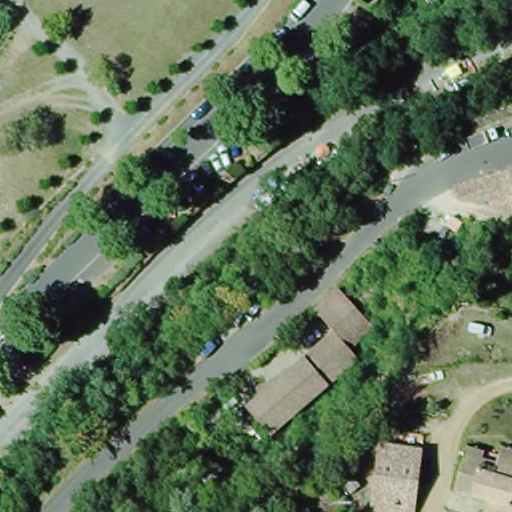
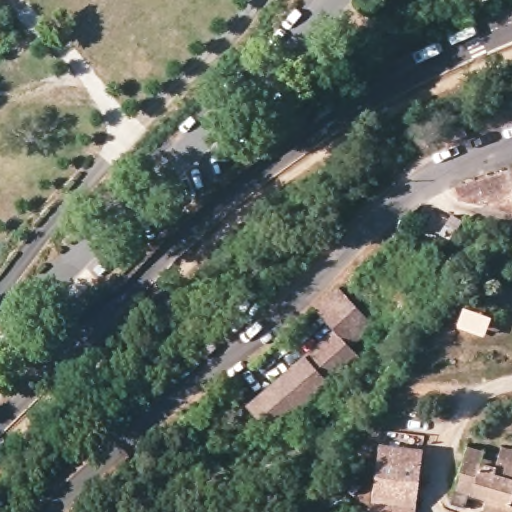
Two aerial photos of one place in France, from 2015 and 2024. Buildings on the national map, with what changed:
unchanged [(361,0),(381,0),(372,9),(361,0)]
unchanged [(489,209),(464,210),(461,196),(484,185),(512,176),(512,216),(489,209)]
unchanged [(339,285),(344,292),(369,320),(343,342),(332,331),(312,308),(339,285)]
unchanged [(332,331),(343,342),(360,358),(326,390),(301,362),(332,331)]
unchanged [(247,408),(301,362),(326,390),(271,433),(247,408)]
unchanged [(385,441),(426,450),(417,505),(375,497),(385,441)]
unchanged [(487,503),(453,497),(461,451),(462,443),(482,446),(481,455),(499,457),(500,450),(502,441),(512,443),(512,512),(486,512),(487,503)]

